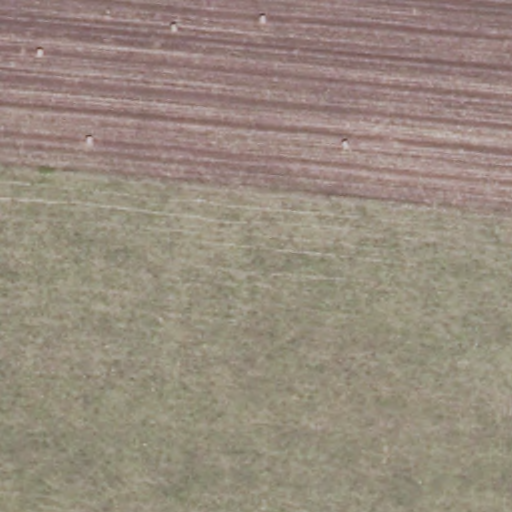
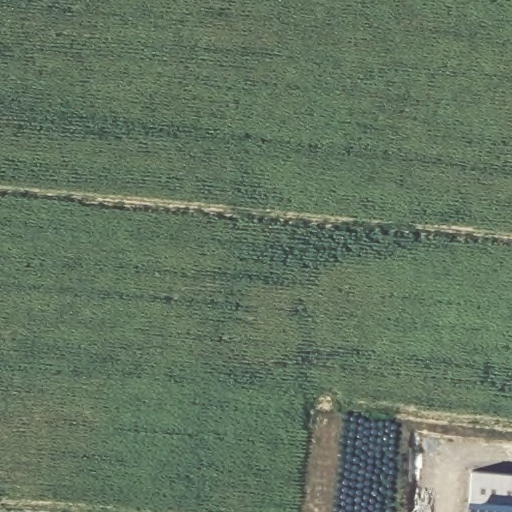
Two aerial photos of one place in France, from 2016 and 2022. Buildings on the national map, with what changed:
new [(471,471),(512,474),(512,512),(469,512),(470,498),(471,471)]

